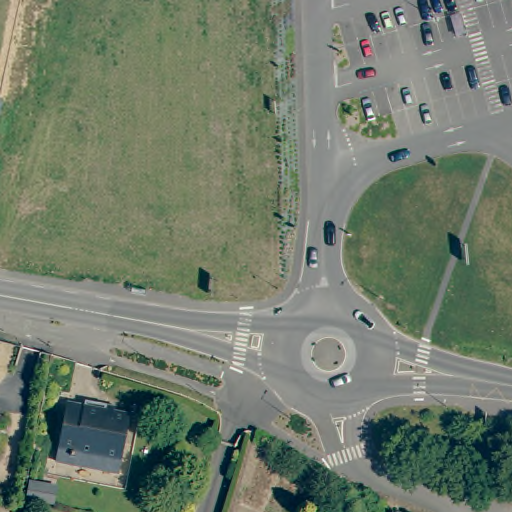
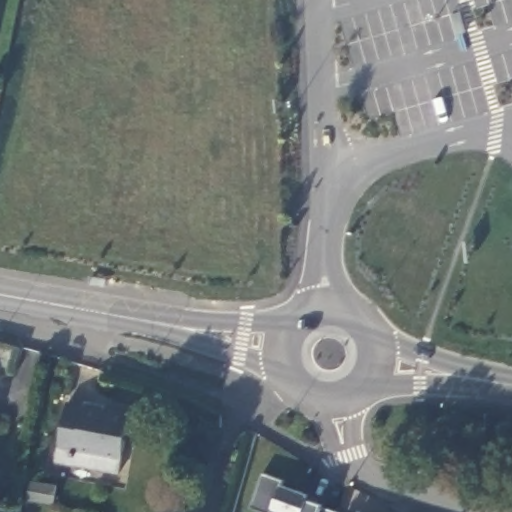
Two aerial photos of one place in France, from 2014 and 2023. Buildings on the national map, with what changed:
unchanged [(66,448),(54,446),(63,399),(80,402),(81,397),(103,401),(101,405),(105,411),(110,408),(126,411),(115,469),(64,460),(66,448)]
new [(263,475),(282,482),(279,487),(309,498),(307,503),(322,508),(332,512),(259,512),(250,508),(263,475)]
unchanged [(58,493),(54,511),(28,506),(30,488),(58,493)]
demolished [(389,512),(394,500),(423,512),(389,512)]
demolished [(350,512),(347,512),(348,511),(350,512)]

